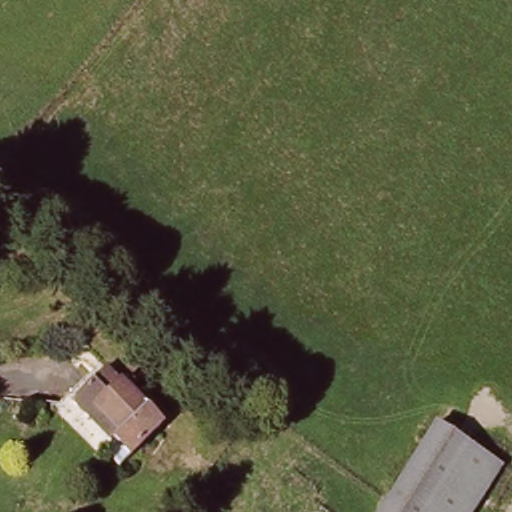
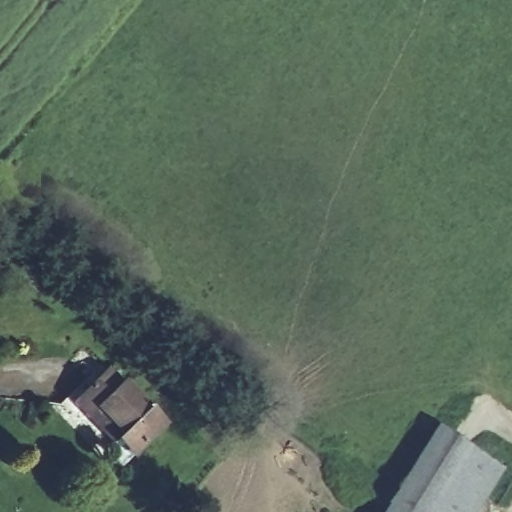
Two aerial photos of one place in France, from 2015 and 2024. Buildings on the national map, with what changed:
unchanged [(100,446),(110,438),(73,396),(108,367),(157,425),(114,462),(100,446)]
unchanged [(500,473),(476,512),(386,512),(435,432),(500,473)]

